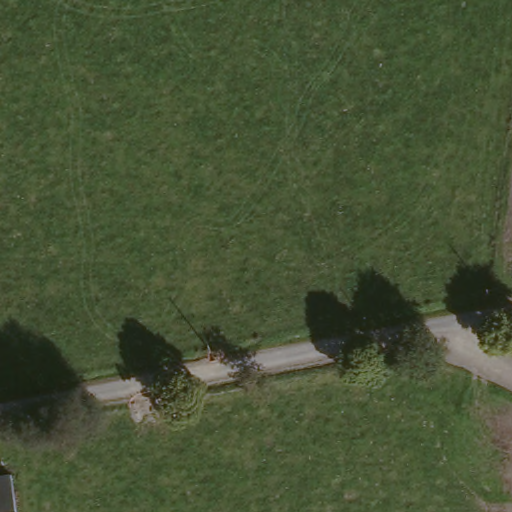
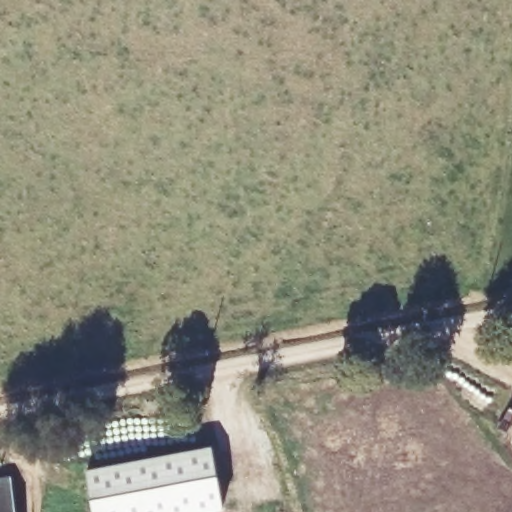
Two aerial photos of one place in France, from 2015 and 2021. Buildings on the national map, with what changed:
new [(211,449),(223,511),(215,512),(95,512),(88,472),(211,449)]
unchanged [(12,512),(0,512),(0,485),(7,484),(12,512)]

